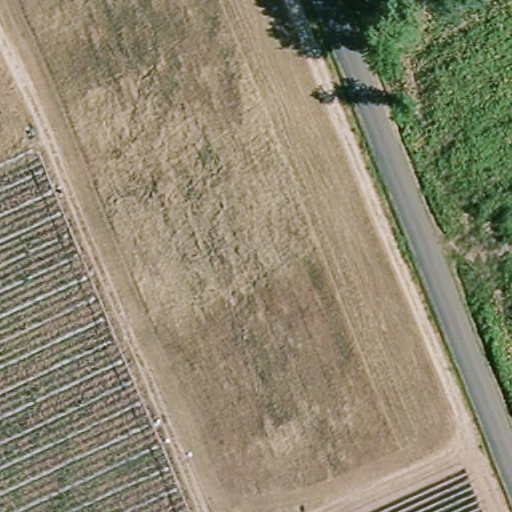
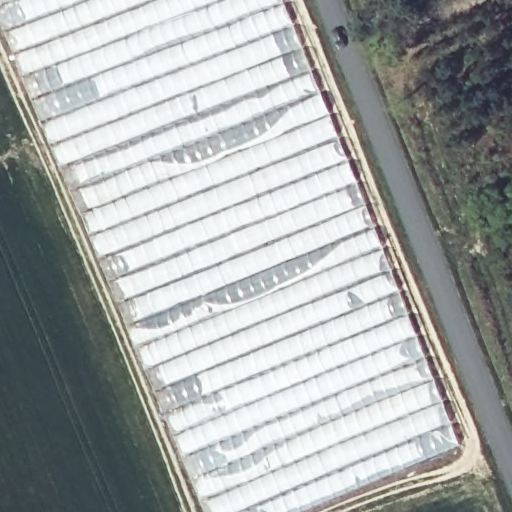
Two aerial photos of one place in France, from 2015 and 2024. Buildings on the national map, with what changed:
demolished [(454,437),(290,512),(213,512),(4,0),(278,0),(454,437)]
demolished [(35,136),(0,149),(0,48),(35,136)]

